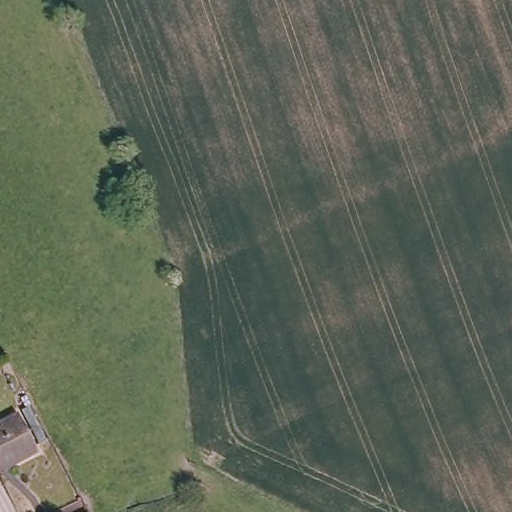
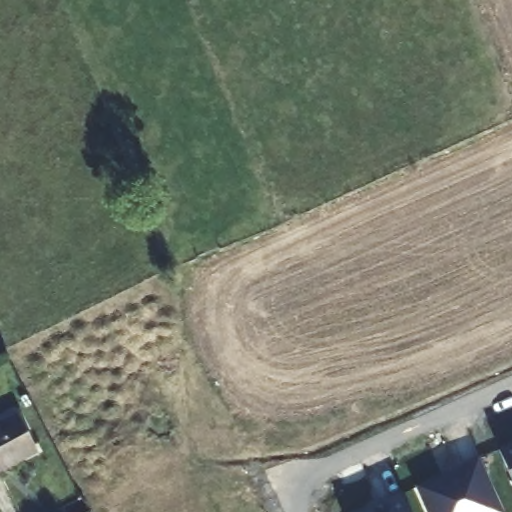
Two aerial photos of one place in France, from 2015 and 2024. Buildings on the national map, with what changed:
unchanged [(18,412),(38,451),(0,471),(0,422),(18,412)]
new [(512,442),(512,475),(498,448),(512,442)]
new [(426,512),(414,485),(479,456),(504,512),(426,512)]
new [(359,512),(403,491),(413,512),(359,512)]

